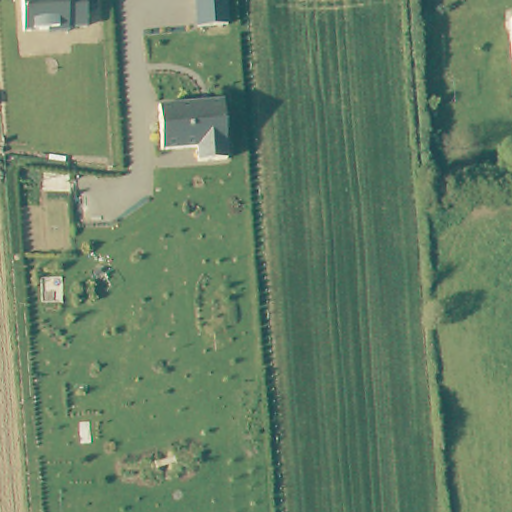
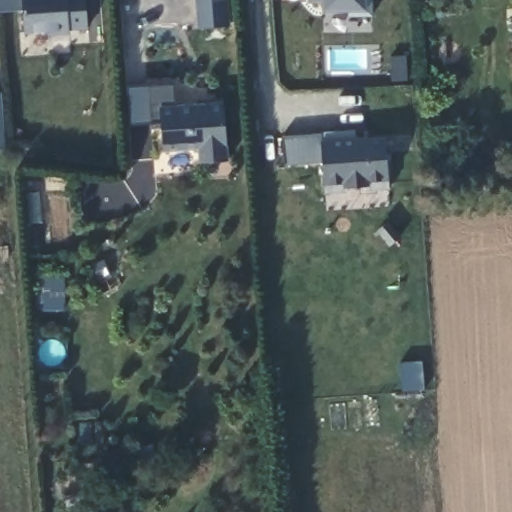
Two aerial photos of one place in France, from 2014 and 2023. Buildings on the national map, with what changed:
unchanged [(83,0),(86,29),(24,34),(22,0),(83,0)]
unchanged [(199,30),(197,0),(227,0),(228,28),(199,30)]
new [(344,18),(343,11),(321,11),(320,6),(308,5),(308,0),(373,0),(373,18),(344,18)]
unchanged [(506,20),(512,19),(512,61),(511,61),(506,20)]
new [(130,125),(127,86),(172,84),(174,108),(161,109),(162,122),(130,125)]
new [(0,99),(4,149),(0,149),(0,99)]
unchanged [(228,163),(200,164),(199,149),(164,151),(161,109),(224,105),(228,163)]
new [(356,139),(385,136),(389,189),(321,191),(320,159),(283,165),(281,137),(355,130),(356,139)]

